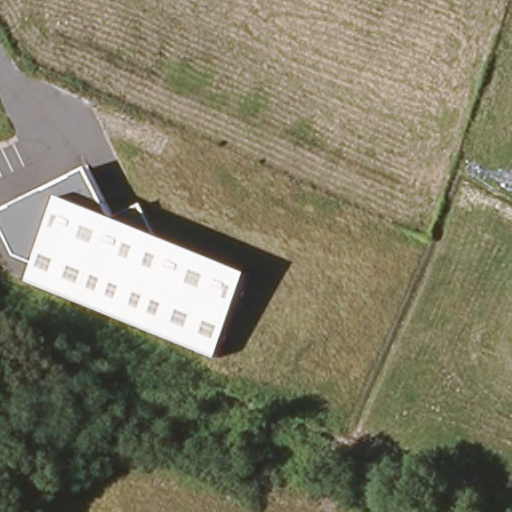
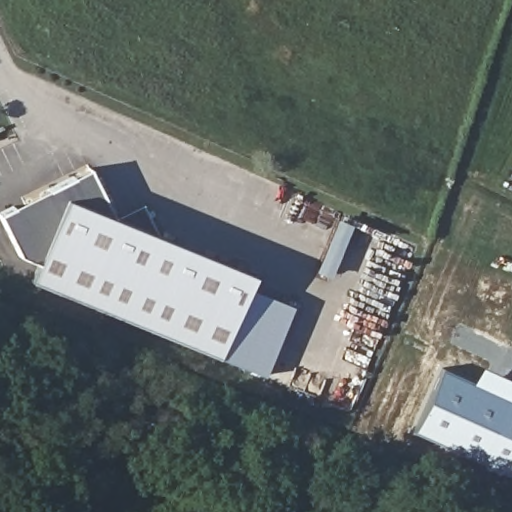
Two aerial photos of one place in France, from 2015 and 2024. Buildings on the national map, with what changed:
unchanged [(113,217),(141,205),(160,238),(250,275),(217,356),(31,282),(37,264),(20,258),(0,220),(0,214),(89,168),(113,217)]
new [(245,288),(293,307),(265,374),(217,356),(245,288)]
new [(414,431),(442,369),(473,383),(481,365),(512,379),(512,476),(414,431)]

